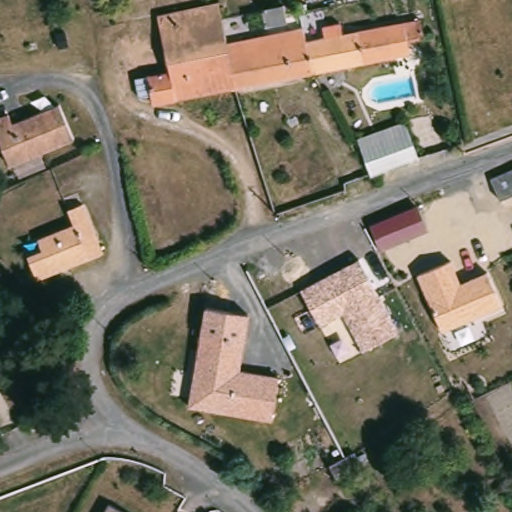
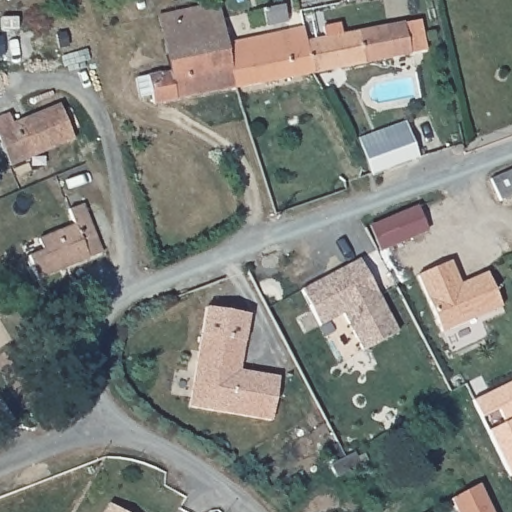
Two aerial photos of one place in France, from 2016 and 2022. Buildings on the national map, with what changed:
unchanged [(133,77),(146,75),(167,71),(157,15),(217,3),(225,42),(234,87),(151,103),(149,95),(137,97),(133,77)]
unchanged [(286,20),(265,25),(261,8),(282,3),(286,20)]
unchanged [(323,37),(321,26),(338,23),(341,34),(418,19),(422,34),(405,37),(408,53),(311,72),(305,41),(323,37)]
unchanged [(234,87),(225,42),(264,35),(265,35),(302,28),(305,41),(311,72),(234,87)]
unchanged [(0,114),(12,111),(15,121),(64,109),(73,145),(6,162),(0,140),(0,114)]
unchanged [(417,157),(369,174),(356,139),(403,121),(417,157)]
unchanged [(498,200),(489,179),(512,169),(512,194),(498,200)]
unchanged [(25,256),(40,250),(36,239),(72,225),(66,210),(81,204),(100,253),(34,279),(25,256)]
unchanged [(415,206),(430,243),(385,262),(379,250),(378,250),(368,225),(415,206)]
unchanged [(400,331),(363,351),(342,312),(317,324),(300,289),(360,259),(400,331)]
unchanged [(415,274),(450,260),(458,283),(489,271),(506,307),(446,332),(415,274)]
unchanged [(188,406),(202,306),(246,313),(238,367),(279,374),(272,421),(188,406)]
unchanged [(366,448),(372,460),(348,473),(342,461),(366,448)]
new [(502,512),(466,512),(459,497),(488,484),(502,512)]
unchanged [(123,512),(107,512),(111,505),(123,512)]
unchanged [(341,512),(347,509),(348,512),(341,512)]

